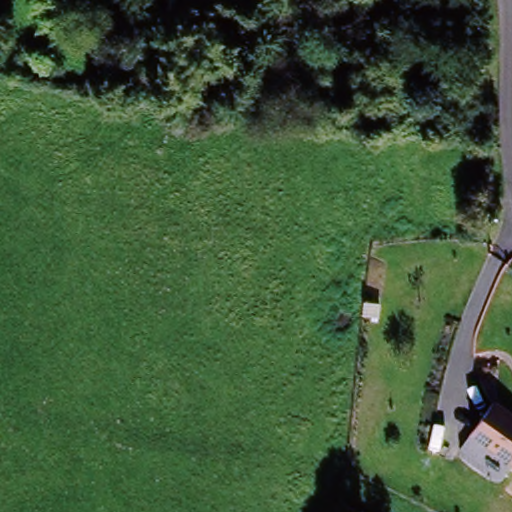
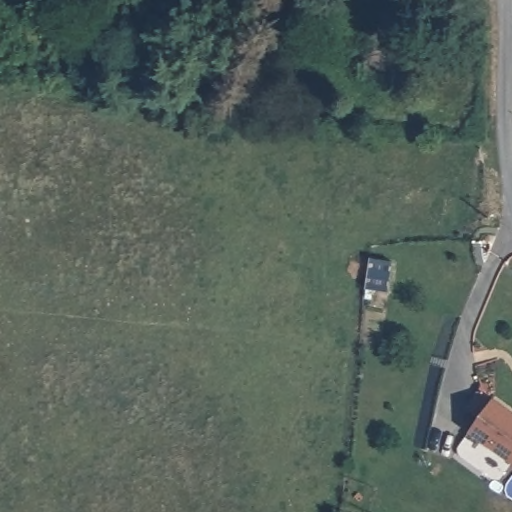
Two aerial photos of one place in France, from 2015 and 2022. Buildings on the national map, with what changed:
unchanged [(482,405),(512,413),(512,454),(473,444),(482,405)]

